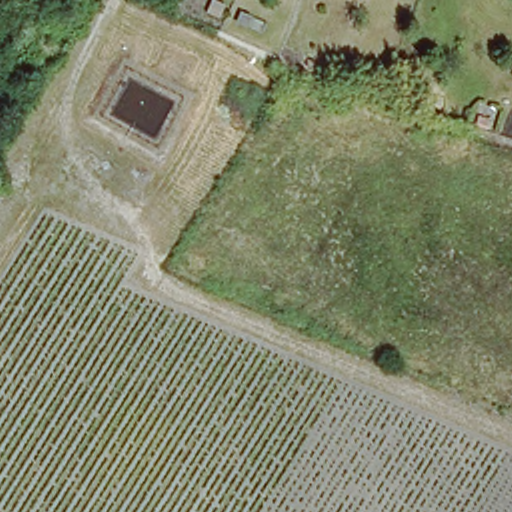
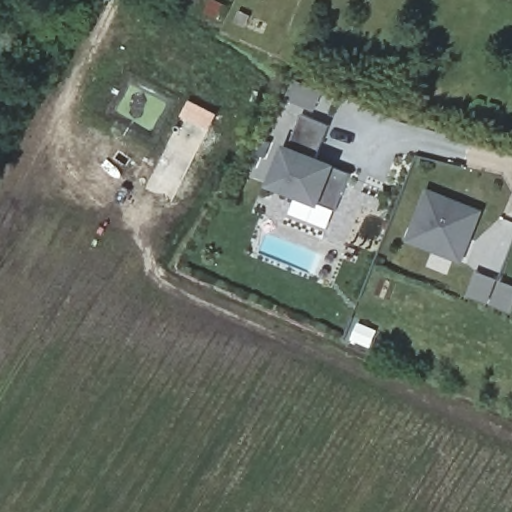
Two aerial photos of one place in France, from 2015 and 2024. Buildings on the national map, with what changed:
new [(288,100),(295,80),(324,91),(316,111),(288,100)]
new [(337,211),(321,204),(320,208),(270,188),(285,145),(292,148),(302,116),(331,127),(320,158),(336,165),(351,173),(337,211)]
new [(462,265),(406,242),(428,188),(484,210),(462,265)]
new [(488,302),(468,295),(477,272),(497,279),(488,302)]
new [(492,304),(501,281),(512,286),(512,312),(492,304)]

